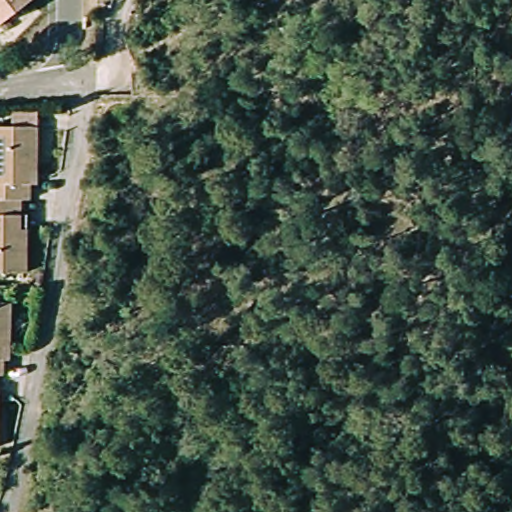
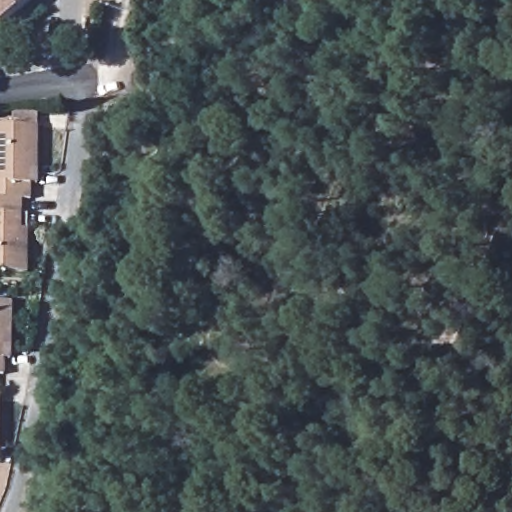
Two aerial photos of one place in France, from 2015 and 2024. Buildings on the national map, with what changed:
unchanged [(35,0),(0,24),(0,0),(34,0),(35,0)]
unchanged [(0,200),(0,128),(15,128),(15,111),(38,111),(38,128),(37,162),(28,164),(28,201),(20,201),(0,200)]
unchanged [(20,201),(20,241),(27,241),(27,275),(0,276),(0,200),(20,201)]
unchanged [(10,303),(8,341),(0,339),(0,347),(0,303),(10,303)]

